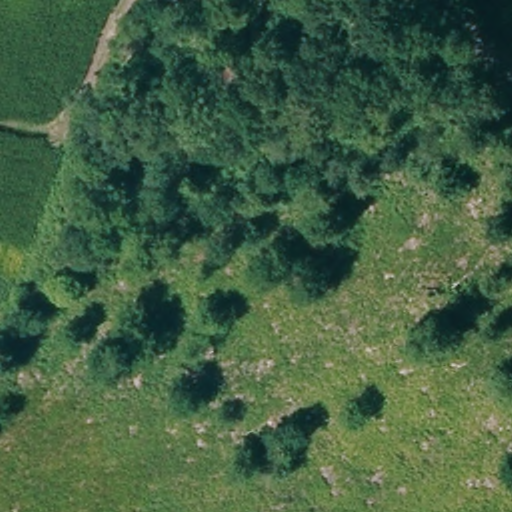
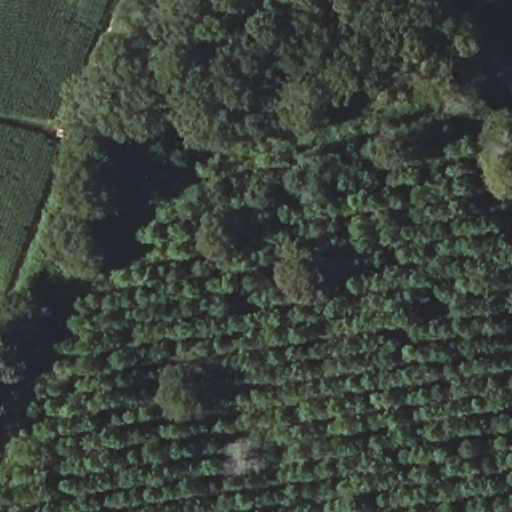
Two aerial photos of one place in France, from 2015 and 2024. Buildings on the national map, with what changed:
[]

